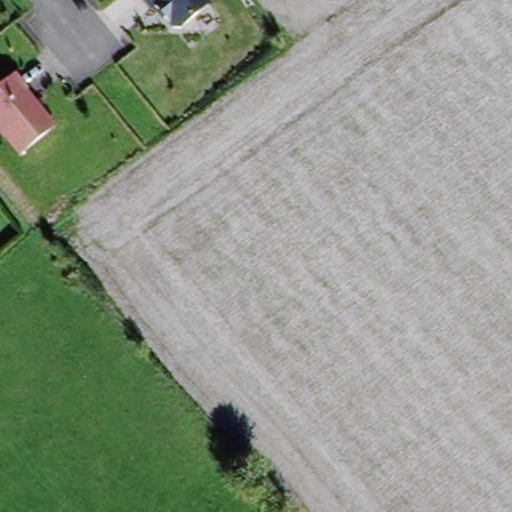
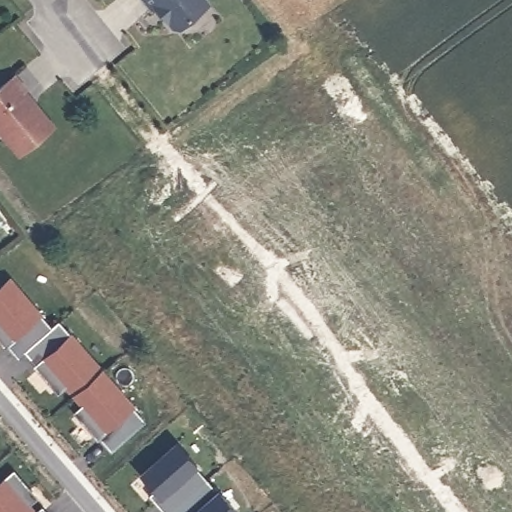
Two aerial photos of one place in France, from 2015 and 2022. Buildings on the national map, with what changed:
unchanged [(171,34),(149,7),(145,10),(137,0),(200,0),(205,5),(171,34)]
unchanged [(15,155),(0,137),(0,87),(11,79),(50,126),(15,155)]
new [(9,278),(41,315),(39,317),(50,329),(26,350),(19,356),(7,342),(5,344),(0,338),(0,286),(9,278)]
new [(50,329),(57,324),(68,337),(70,335),(101,372),(74,394),(59,377),(51,383),(35,364),(37,363),(26,350),(50,329)]
new [(101,372),(131,409),(130,410),(141,424),(111,449),(101,437),(99,438),(82,419),(90,413),(74,394),(101,372)]
new [(178,442),(193,460),(191,462),(207,481),(170,512),(163,512),(149,496),(156,491),(141,473),(178,442)]
new [(31,488),(36,494),(29,501),(37,511),(43,506),(48,512),(0,512),(0,480),(14,469),(31,488)]
new [(207,481),(224,501),(225,499),(236,512),(170,512),(207,481)]

